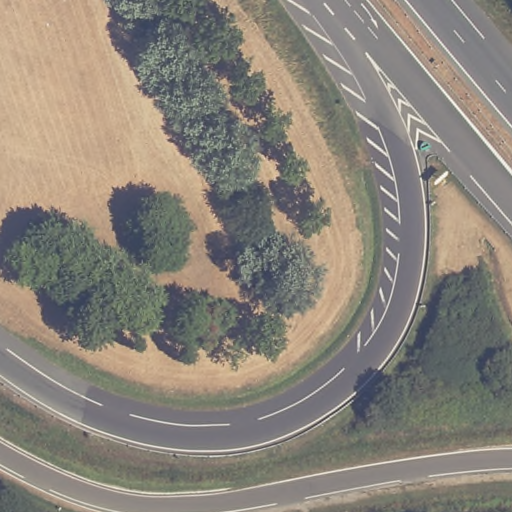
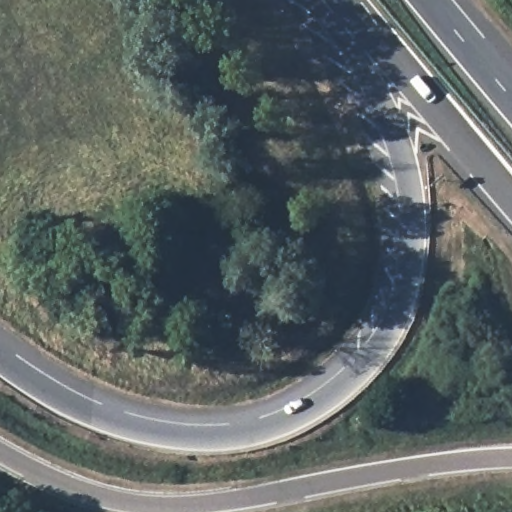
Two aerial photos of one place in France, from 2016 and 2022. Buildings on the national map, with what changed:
[]

